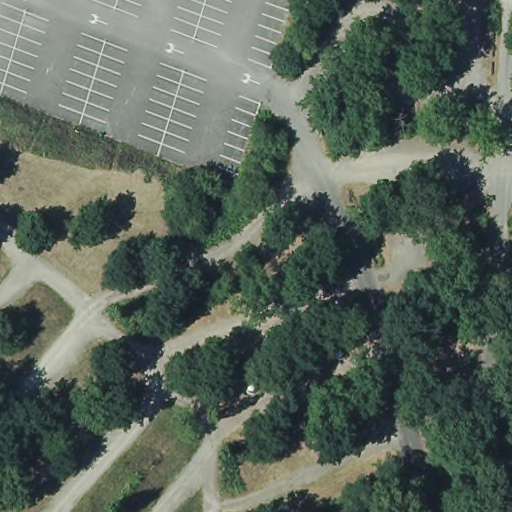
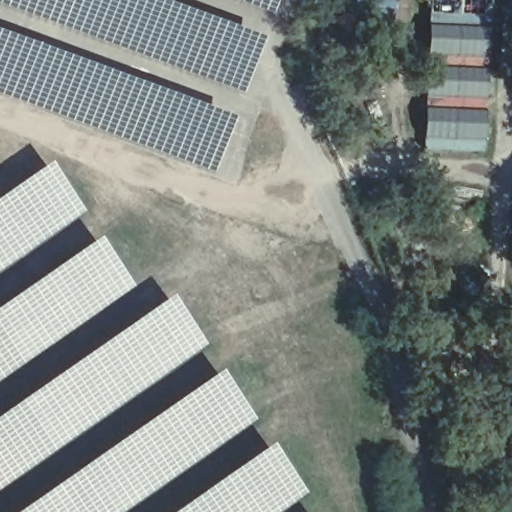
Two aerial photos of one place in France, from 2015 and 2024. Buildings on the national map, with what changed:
new [(30,16),(0,3),(0,0),(154,0),(263,42),(242,96),(31,14),(30,16)]
new [(272,13),(235,0),(277,0),(272,13)]
new [(488,152),(427,151),(431,0),(492,0),(488,152)]
new [(235,118),(214,174),(0,94),(0,30),(235,118)]
new [(0,270),(0,198),(51,162),(85,211),(0,270)]
new [(0,380),(0,307),(100,237),(134,286),(0,380)]
new [(207,344),(0,488),(0,416),(173,295),(207,344)]
new [(19,512),(222,370),(256,419),(123,512),(19,512)]
new [(175,512),(273,444),(307,493),(280,512),(175,512)]

